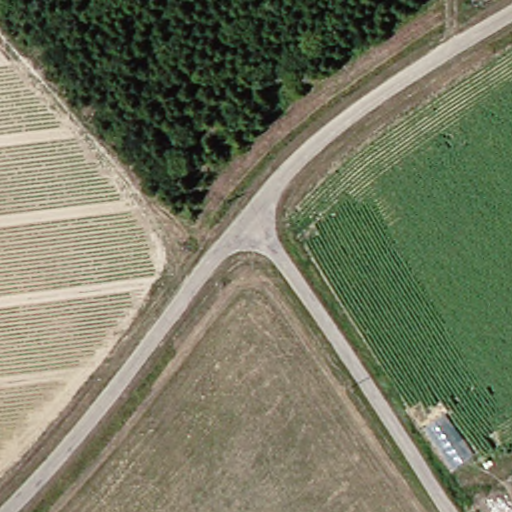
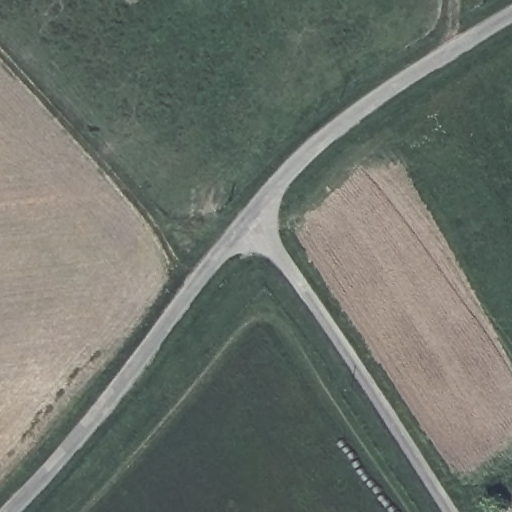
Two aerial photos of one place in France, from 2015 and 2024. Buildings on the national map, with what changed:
[]

